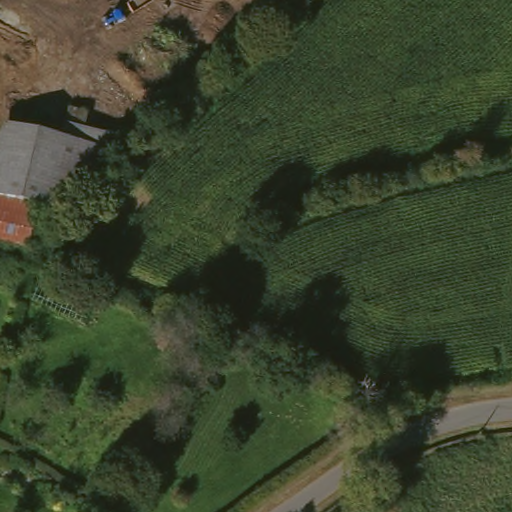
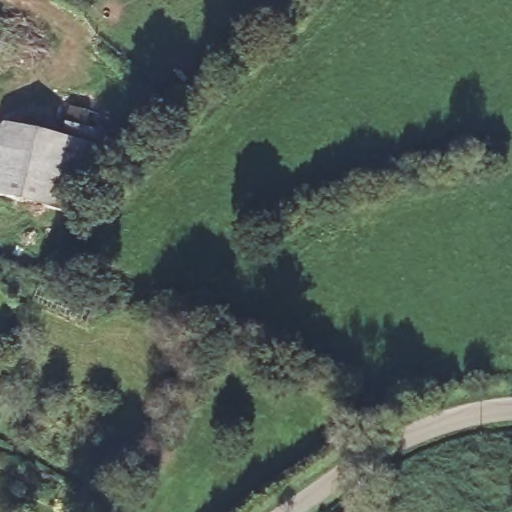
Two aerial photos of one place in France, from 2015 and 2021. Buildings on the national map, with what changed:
unchanged [(66,110),(86,115),(81,132),(113,139),(102,182),(71,174),(71,172),(77,145),(58,140),(66,110)]
unchanged [(71,174),(58,214),(31,207),(0,197),(0,176),(11,130),(58,140),(77,145),(71,172),(71,174)]
unchanged [(0,245),(0,197),(31,207),(22,250),(0,245)]

